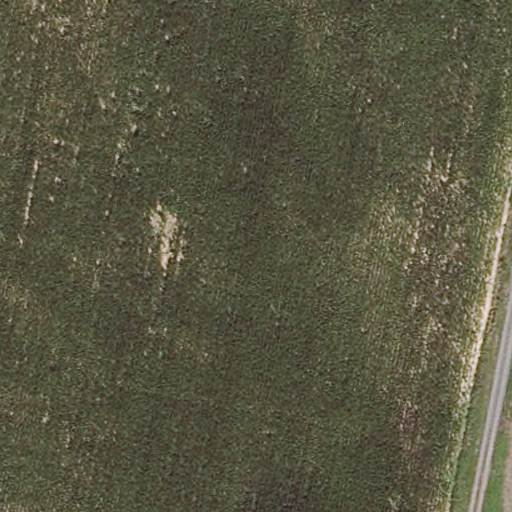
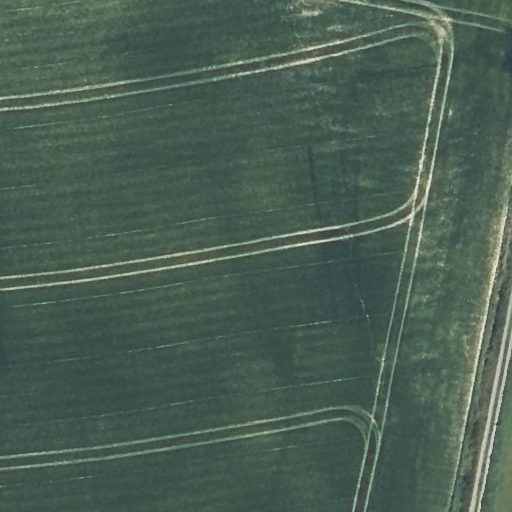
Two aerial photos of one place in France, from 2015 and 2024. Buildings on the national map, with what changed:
[]

